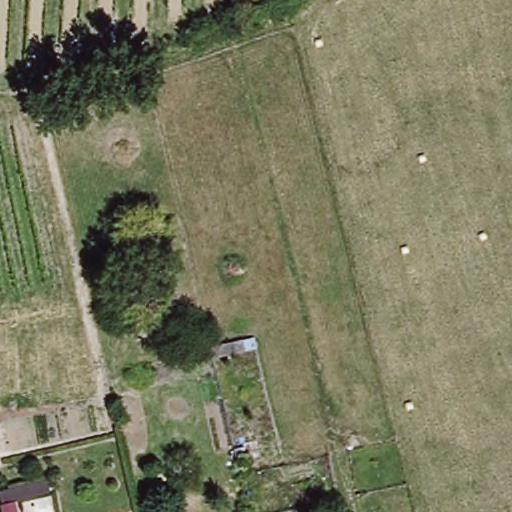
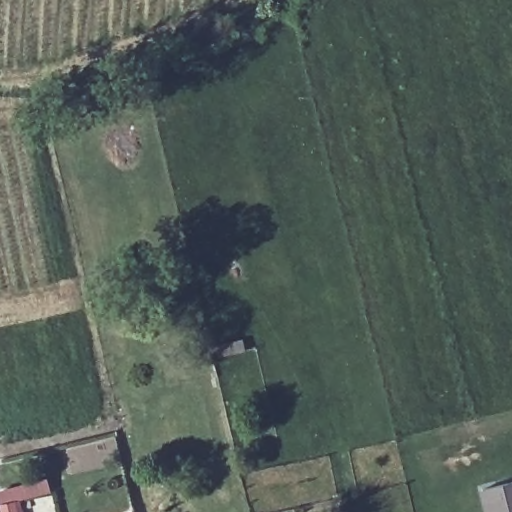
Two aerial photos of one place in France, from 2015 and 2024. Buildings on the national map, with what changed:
new [(482,488),(512,482),(512,512),(488,512),(482,488)]

